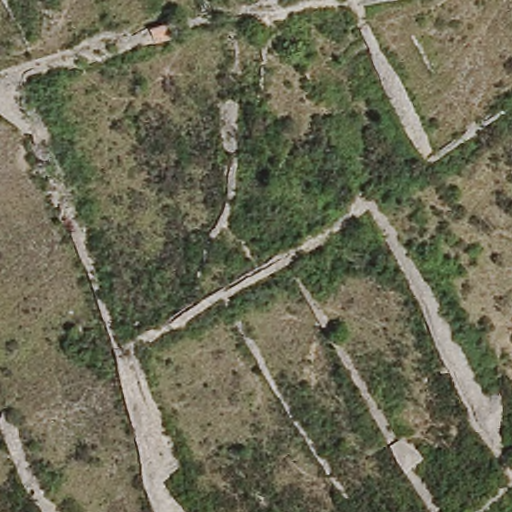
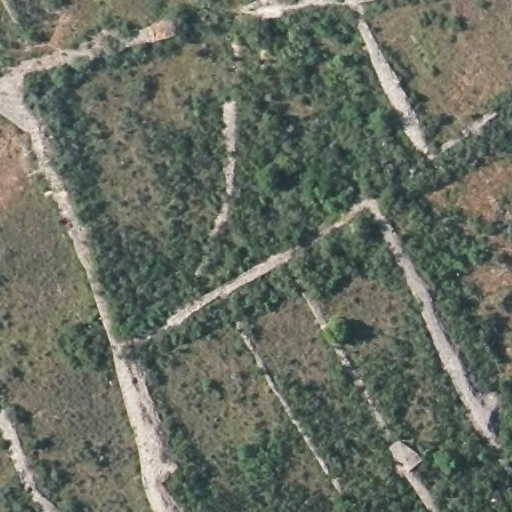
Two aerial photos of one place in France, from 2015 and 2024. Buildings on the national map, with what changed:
[]

